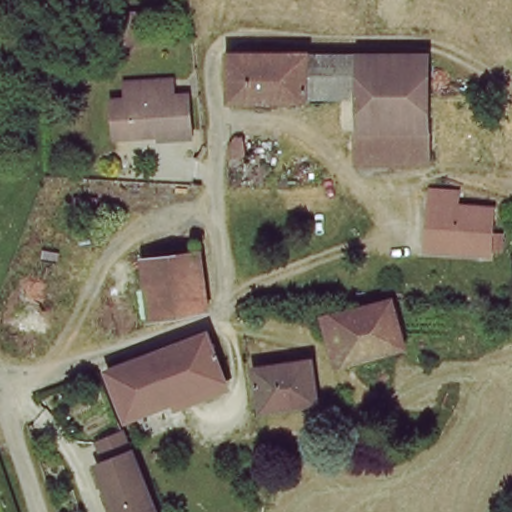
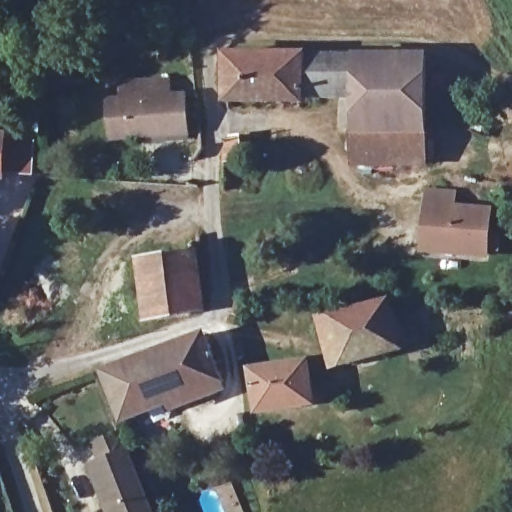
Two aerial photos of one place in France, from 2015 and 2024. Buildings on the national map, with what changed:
unchanged [(312,54),(311,94),(221,92),(221,54),(312,54)]
unchanged [(429,54),(429,160),(355,160),(355,95),(311,94),(312,54),(429,54)]
unchanged [(116,134),(112,100),(133,97),(130,82),(169,76),(172,92),(186,90),(189,126),(116,134)]
new [(8,175),(0,175),(0,132),(8,132),(8,175)]
unchanged [(422,194),(450,194),(450,211),(495,210),(493,253),(420,254),(421,212),(422,194)]
unchanged [(204,307),(156,316),(146,261),(199,255),(204,307)]
unchanged [(326,327),(323,311),(394,299),(395,318),(410,317),(412,339),(399,340),(400,349),(345,356),(330,358),(326,327)]
unchanged [(207,334),(221,382),(132,418),(114,371),(207,334)]
unchanged [(314,405),(261,414),(252,365),(307,357),(314,405)]
unchanged [(428,375),(414,376),(412,363),(427,361),(428,375)]
unchanged [(96,461),(90,441),(119,436),(125,450),(134,446),(159,512),(107,512),(89,463),(96,461)]

